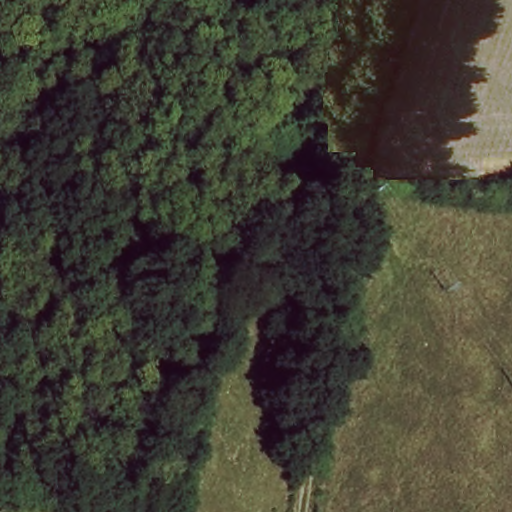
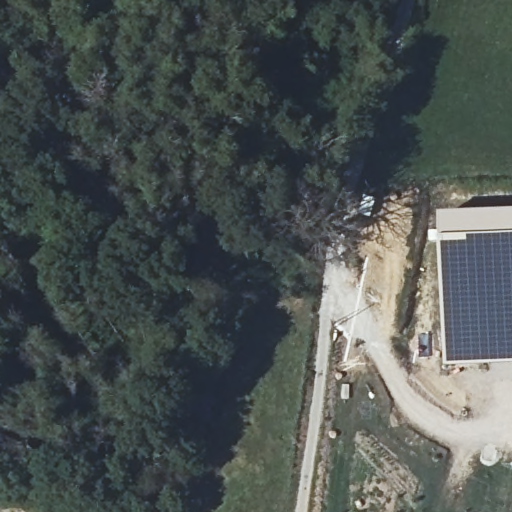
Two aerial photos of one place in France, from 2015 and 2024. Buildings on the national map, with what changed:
new [(512,211),(512,364),(445,366),(438,214),(512,211)]

